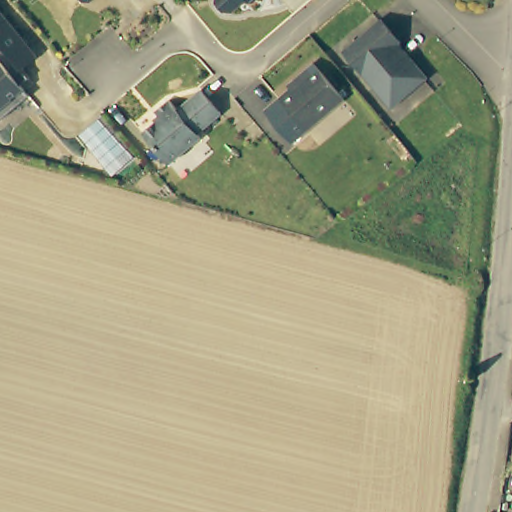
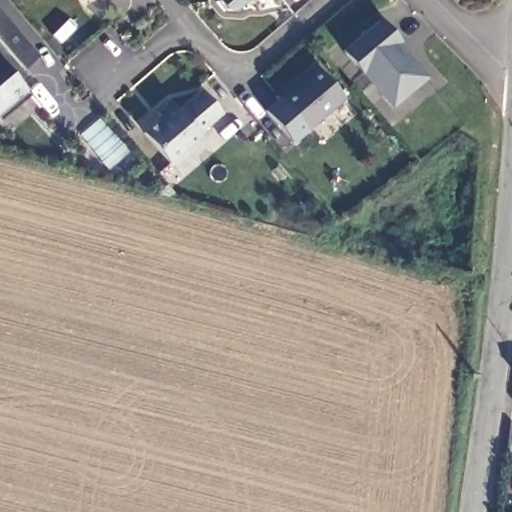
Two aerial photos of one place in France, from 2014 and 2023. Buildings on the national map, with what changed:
unchanged [(83,4),(80,0),(94,0),(90,4),(83,4)]
unchanged [(255,5),(249,5),(245,1),(232,12),(224,12),(217,3),(216,0),(257,0),(257,5),(255,5)]
unchanged [(28,66),(36,75),(26,84),(35,94),(5,120),(0,114),(0,5),(43,54),(28,66)]
unchanged [(379,20),(396,39),(394,41),(424,75),(392,105),(344,51),(379,20)]
unchanged [(348,96),(295,139),(269,107),(296,85),(292,82),(307,70),(319,60),(348,96)]
unchanged [(157,117),(151,111),(166,99),(174,108),(198,88),(218,110),(194,131),(197,135),(166,162),(139,132),(157,117)]

